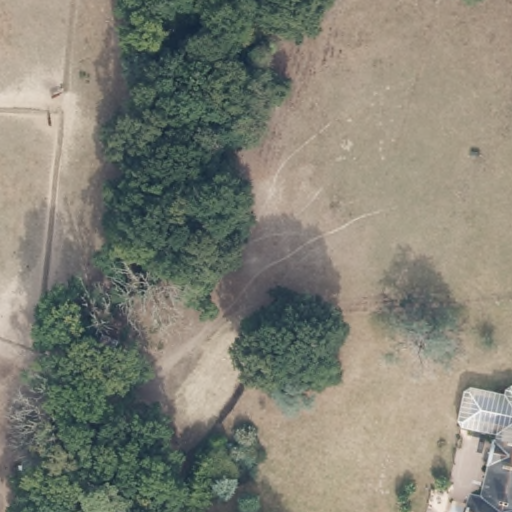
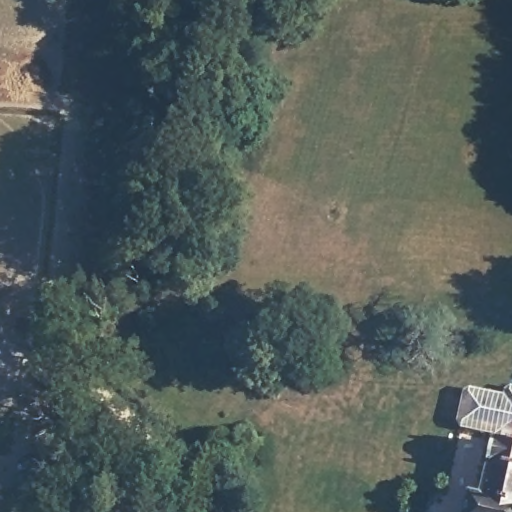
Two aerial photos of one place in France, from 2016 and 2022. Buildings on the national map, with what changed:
unchanged [(467,386),(500,393),(511,382),(512,383),(512,512),(465,512),(467,500),(477,501),(491,435),(464,430),(453,423),(457,391),(467,386)]

